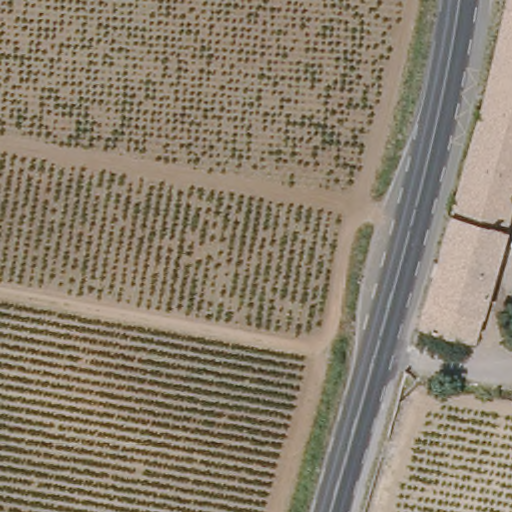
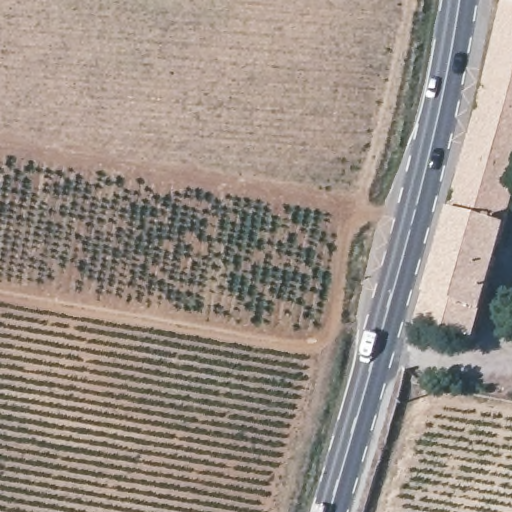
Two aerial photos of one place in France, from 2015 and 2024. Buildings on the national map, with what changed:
unchanged [(505,228),(452,214),(477,125),(505,11),(507,0),(512,0),(512,204),(505,228)]
unchanged [(505,228),(474,339),(420,325),(452,214),(505,228)]

